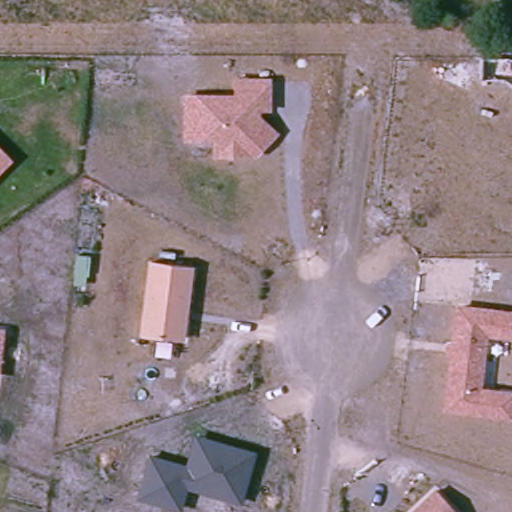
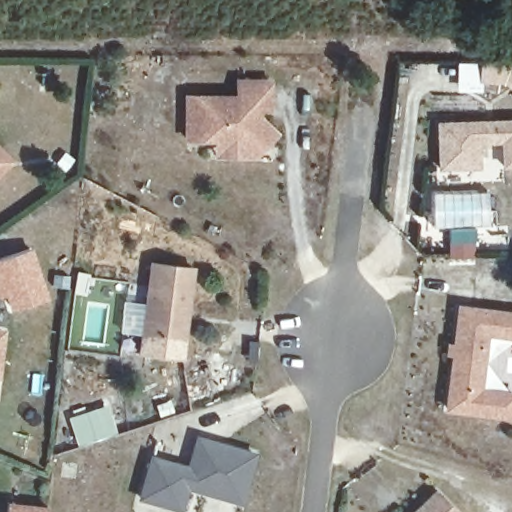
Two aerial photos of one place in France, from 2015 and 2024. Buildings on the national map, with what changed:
new [(479,65),(508,65),(512,68),(512,93),(501,86),(478,86),(479,65)]
unchanged [(215,138),(185,137),(186,96),(236,96),(237,80),(268,80),(268,108),(257,108),(257,115),(274,132),(253,154),(215,153),(215,138)]
new [(512,127),(512,172),(500,172),(499,147),(474,148),(475,173),(437,174),(435,130),(512,127)]
unchanged [(0,162),(0,152),(5,158),(0,162)]
new [(438,225),(437,193),(488,192),(489,224),(474,225),(475,257),(450,257),(449,225),(438,225)]
new [(5,295),(0,297),(0,258),(31,248),(48,297),(10,308),(5,295)]
unchanged [(188,267),(179,338),(138,333),(146,263),(188,267)]
unchanged [(443,410),(450,357),(445,356),(447,343),(452,343),(458,306),(512,312),(512,341),(488,339),(483,388),(512,391),(512,419),(443,410)]
unchanged [(0,380),(0,327),(6,328),(0,380)]
new [(109,402),(118,434),(77,447),(66,415),(109,402)]
unchanged [(240,503),(188,488),(181,511),(135,497),(150,452),(184,463),(191,434),(255,450),(240,503)]
unchanged [(433,489),(455,512),(408,512),(433,489)]
new [(8,501),(48,506),(47,512),(7,512),(8,501)]

